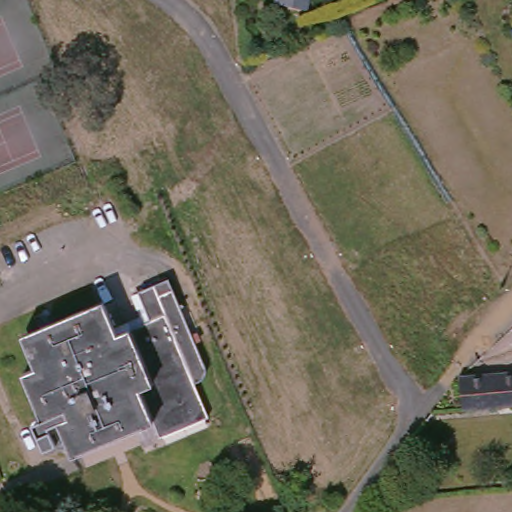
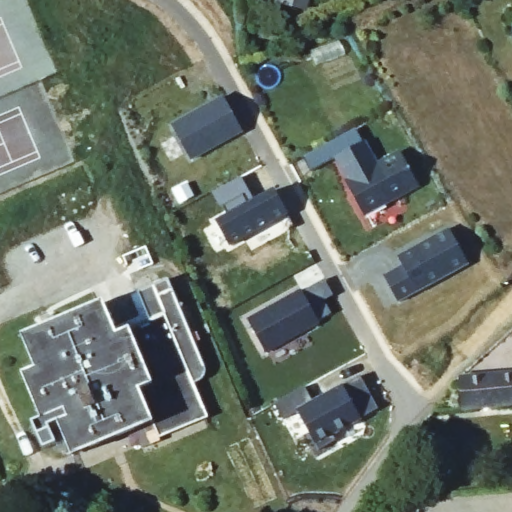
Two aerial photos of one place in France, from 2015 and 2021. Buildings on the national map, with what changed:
new [(304,0),(294,15),(273,2),(274,0),(304,0)]
unchanged [(512,44),(506,36),(512,32),(512,44)]
new [(223,98),(228,106),(242,132),(190,161),(171,127),(208,106),(223,98)]
new [(401,154),(418,186),(364,216),(346,184),(354,180),(350,173),(346,175),(337,158),(311,173),(303,159),(356,130),(363,143),(377,167),(401,154)]
new [(403,267),(398,258),(450,230),(469,264),(399,303),(384,277),(403,267)]
unchanged [(61,446),(49,417),(39,421),(46,439),(34,444),(24,418),(33,415),(14,369),(26,364),(14,335),(96,302),(107,328),(141,315),(130,287),(146,281),(149,285),(160,281),(163,280),(181,323),(198,362),(197,366),(196,370),(194,373),(191,375),(188,377),(185,379),(199,413),(150,433),(142,413),(61,446)]
new [(303,290),(320,323),(268,352),(250,320),(303,290)]
new [(312,404),(351,383),(359,378),(367,393),(378,411),(332,437),(335,443),(318,453),(296,414),(282,423),(273,406),(304,389),(312,404)]
unchanged [(512,411),(456,416),(456,413),(453,387),(453,384),(456,383),(512,378),(512,411)]

